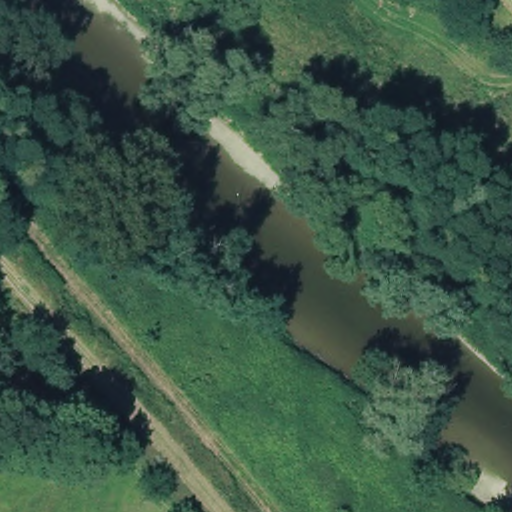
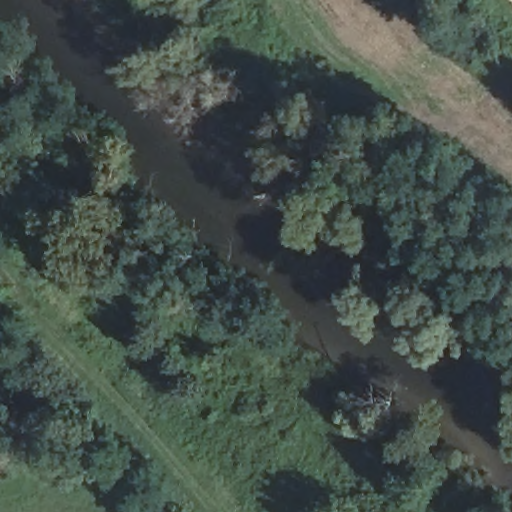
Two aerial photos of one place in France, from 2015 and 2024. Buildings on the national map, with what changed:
[]

